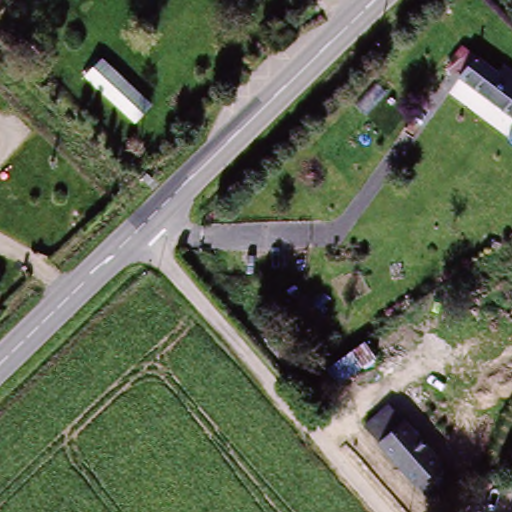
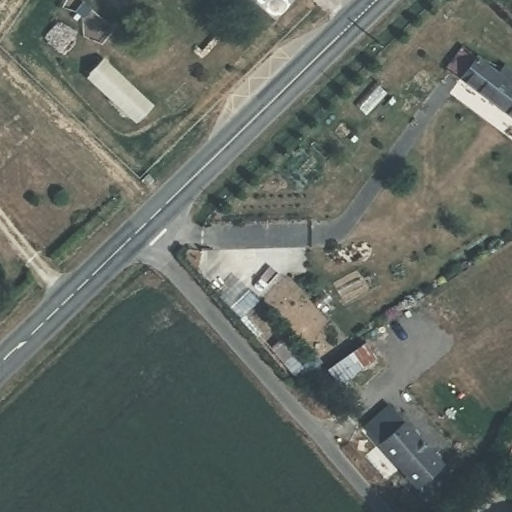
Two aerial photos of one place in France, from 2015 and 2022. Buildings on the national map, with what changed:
unchanged [(445,68),(461,47),(498,72),(504,64),(512,70),(512,118),(445,68)]
unchanged [(152,95),(138,111),(97,76),(110,58),(152,95)]
unchanged [(355,328),(396,305),(405,321),(365,343),(355,328)]
unchanged [(445,462),(455,473),(448,479),(450,481),(425,501),(355,416),(380,397),(438,467),(445,462)]

